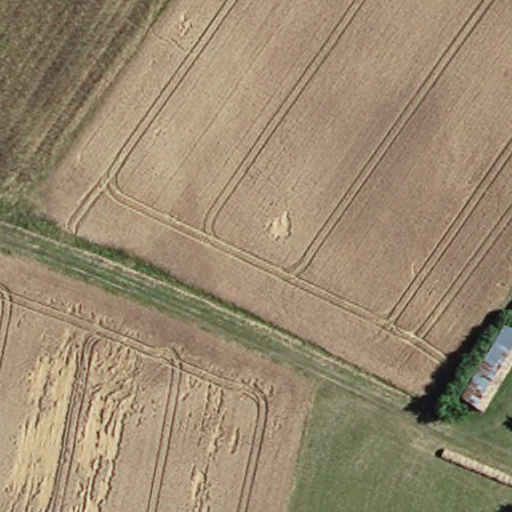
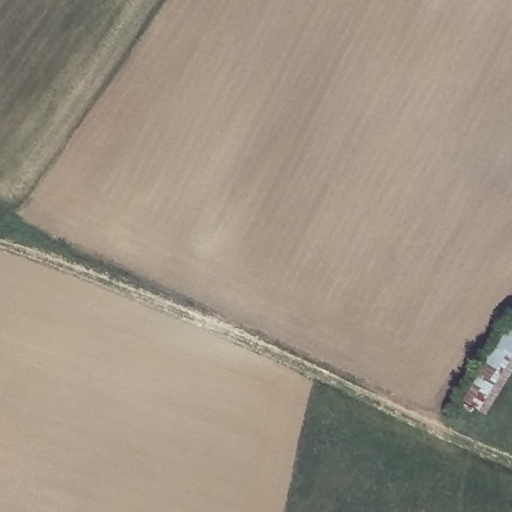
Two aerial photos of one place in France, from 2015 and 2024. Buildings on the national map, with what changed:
unchanged [(451,402),(483,349),(509,364),(476,417),(451,402)]

